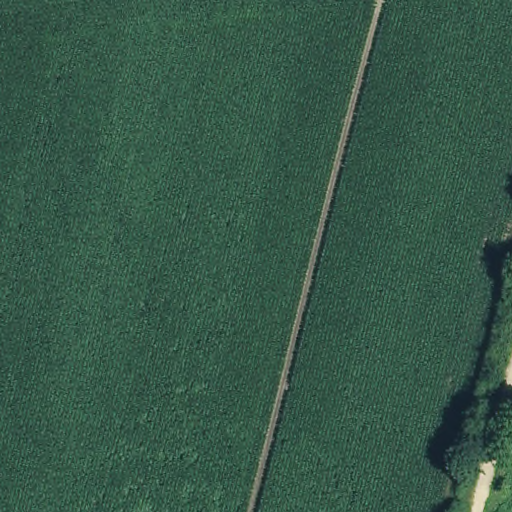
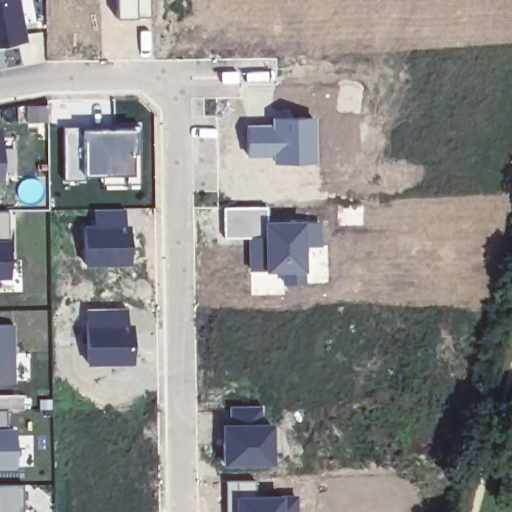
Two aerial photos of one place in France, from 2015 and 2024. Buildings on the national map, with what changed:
new [(24,0),(30,41),(0,47),(0,0),(24,0)]
new [(271,123),(270,115),(310,116),(312,161),(270,161),(270,156),(245,156),(245,123),(271,123)]
new [(134,127),(134,175),(84,176),(63,178),(62,126),(82,127),(134,127)]
new [(3,182),(0,182),(0,128),(2,128),(3,182)]
new [(267,206),(267,219),(262,236),(246,237),(222,238),(222,206),(267,206)]
new [(92,224),(92,208),(127,208),(128,265),(83,265),(82,224),(92,224)]
new [(262,236),(267,219),(321,220),(322,245),(303,246),(302,273),(247,271),(246,237),(262,236)]
new [(0,279),(0,240),(11,240),(12,280),(0,279)]
new [(129,308),(130,364),(84,364),(83,308),(129,308)]
new [(15,383),(0,383),(0,325),(15,325),(15,383)]
new [(227,404),(262,405),(265,421),(268,421),(268,463),(220,463),(220,421),(227,421),(227,404)]
new [(7,408),(10,425),(19,424),(20,468),(0,468),(0,408),(7,408)]
new [(253,481),(254,493),(295,493),(296,512),(228,512),(227,481),(253,481)]
new [(25,482),(25,512),(0,512),(0,483),(25,482)]

